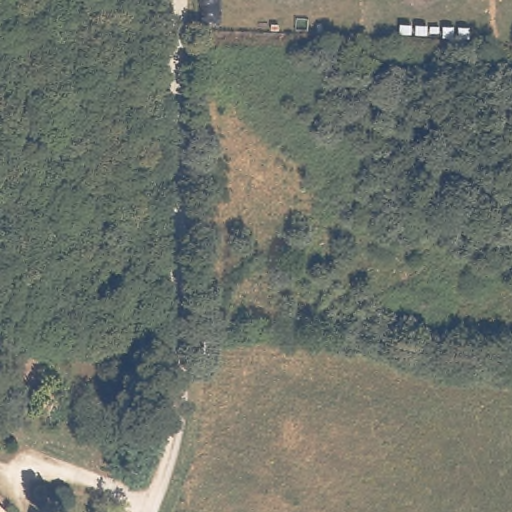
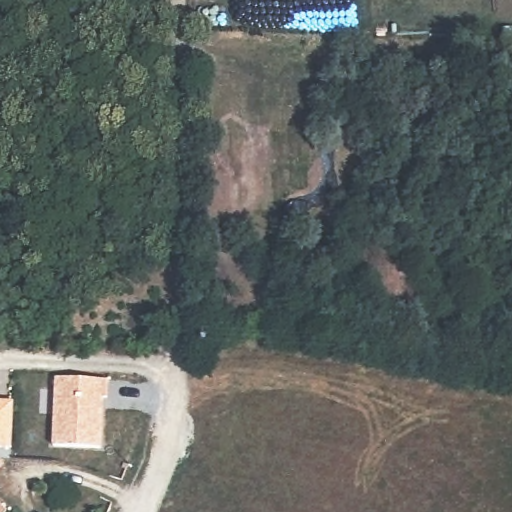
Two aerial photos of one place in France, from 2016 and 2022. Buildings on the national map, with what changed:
new [(55,376),(111,378),(110,397),(106,397),(102,448),(52,447),(55,376)]
unchanged [(0,500),(8,507),(3,512),(0,512),(0,500)]

